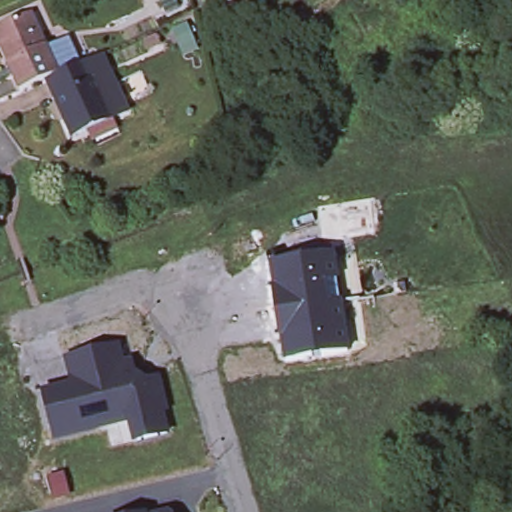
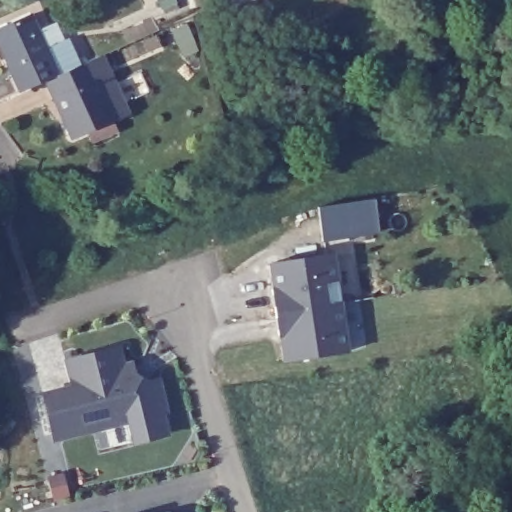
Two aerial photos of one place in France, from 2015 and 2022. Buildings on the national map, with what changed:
unchanged [(0,60),(0,20),(25,9),(53,69),(38,76),(13,88),(2,63),(0,60)]
unchanged [(79,126),(65,132),(38,76),(53,69),(80,56),(93,51),(101,70),(118,109),(106,114),(110,124),(84,136),(79,126)]
new [(371,195),(377,229),(324,238),(318,204),(371,195)]
unchanged [(331,250),(346,348),(285,358),(267,260),(331,250)]
unchanged [(122,344),(125,361),(151,356),(170,433),(133,443),(128,425),(53,440),(40,388),(70,381),(65,356),(122,344)]
unchanged [(167,510),(170,512),(160,512),(167,510)]

